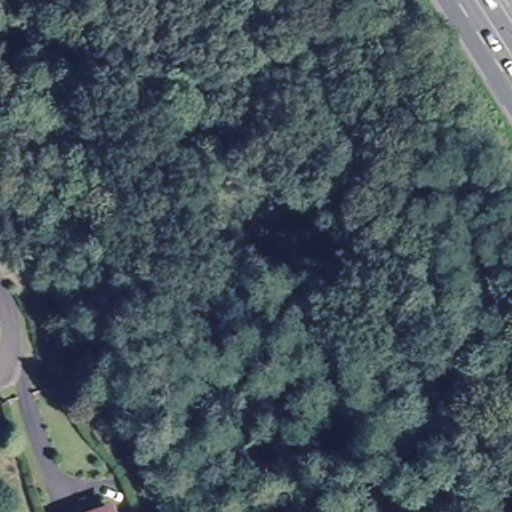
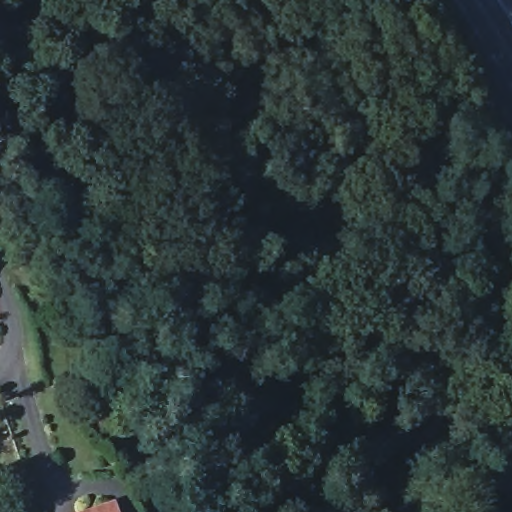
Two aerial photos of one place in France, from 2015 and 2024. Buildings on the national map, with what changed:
unchanged [(113,512),(100,512),(111,508),(113,512)]

